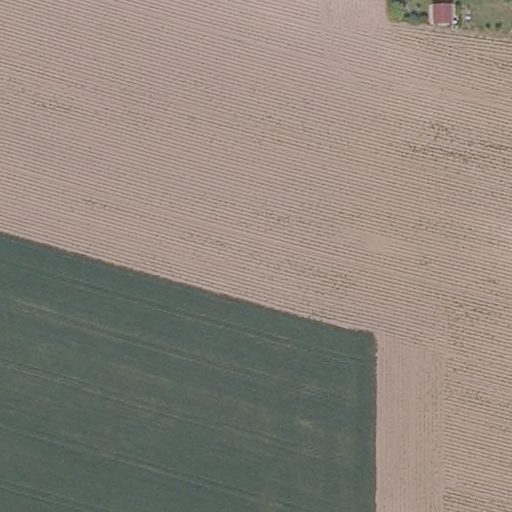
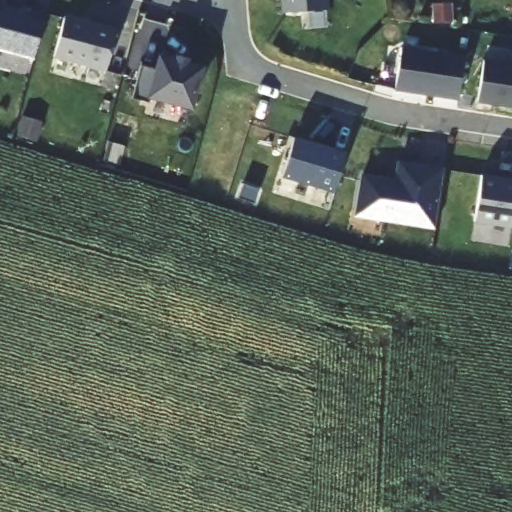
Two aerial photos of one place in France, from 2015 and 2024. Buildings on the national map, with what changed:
new [(34,60),(0,50),(0,0),(5,1),(3,7),(28,13),(30,8),(46,13),(34,60)]
new [(330,8),(280,12),(280,0),(330,0),(330,8)]
new [(106,71),(54,57),(65,15),(117,30),(106,71)]
new [(458,99),(396,90),(401,49),(465,58),(458,99)]
new [(201,67),(191,108),(149,97),(147,102),(134,99),(143,64),(156,68),(160,56),(201,67)]
new [(512,108),(478,103),(485,61),(512,65),(512,108)]
new [(334,194),(282,178),(295,137),(347,155),(334,194)]
new [(435,228),(355,216),(361,174),(396,180),(399,161),(445,169),(435,228)]
new [(481,174),(512,179),(512,228),(475,222),(481,174)]

